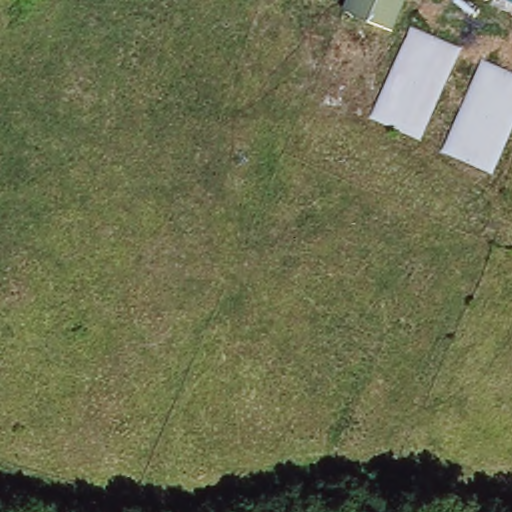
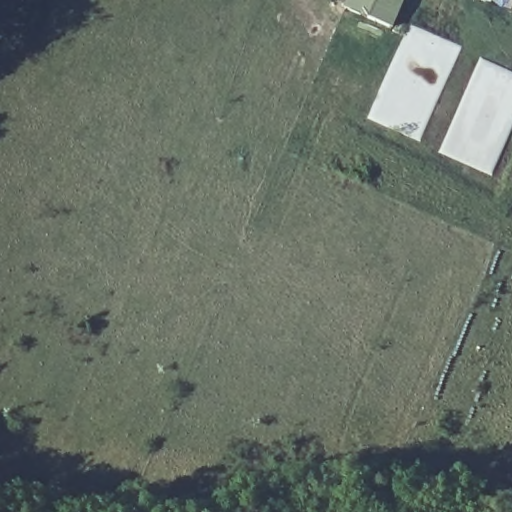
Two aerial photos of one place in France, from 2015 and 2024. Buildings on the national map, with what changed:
unchanged [(388,24),(343,7),(346,0),(397,0),(388,24)]

